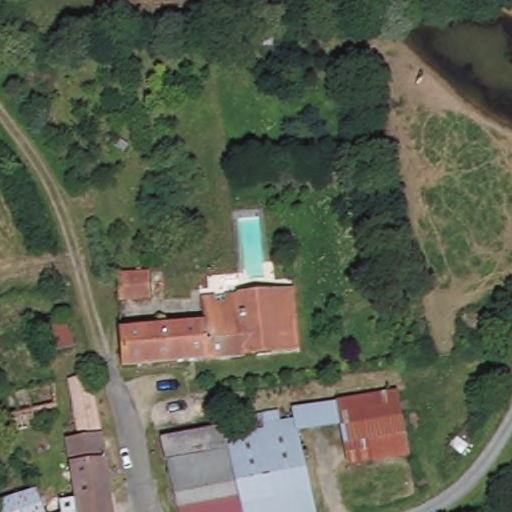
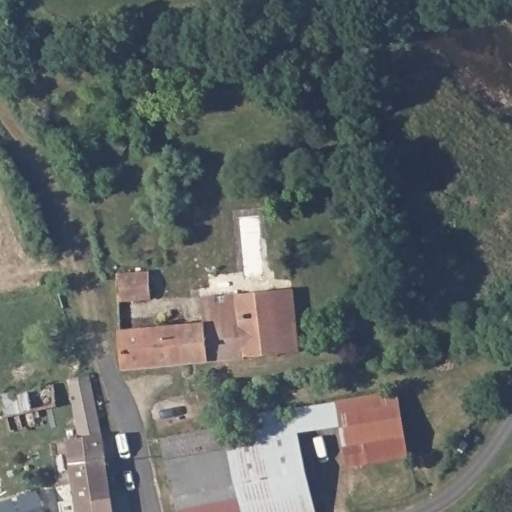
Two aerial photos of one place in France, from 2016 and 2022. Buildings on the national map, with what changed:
unchanged [(153,273),(153,281),(160,281),(162,282),(164,286),(164,290),(161,294),(154,295),(155,299),(122,300),(121,276),(153,273)]
unchanged [(195,298),(289,289),(296,352),(124,366),(120,331),(197,325),(195,298)]
unchanged [(63,316),(73,360),(46,366),(37,322),(63,316)]
unchanged [(88,375),(98,435),(77,438),(75,419),(69,378),(88,375)]
unchanged [(394,394),(403,454),(345,464),(336,405),(394,394)]
unchanged [(253,429),(250,418),(275,413),(278,423),(292,420),(311,512),(177,512),(176,508),(234,493),(224,434),(253,429)]
unchanged [(160,439),(222,426),(224,434),(234,493),(176,508),(160,439)]
unchanged [(67,440),(77,438),(98,435),(107,495),(74,498),(67,440)]
unchanged [(36,495),(42,512),(0,512),(0,507),(36,495)]
unchanged [(107,495),(110,512),(76,512),(74,498),(107,495)]

